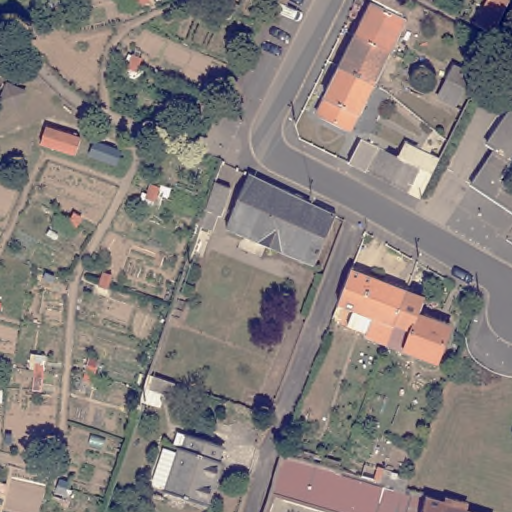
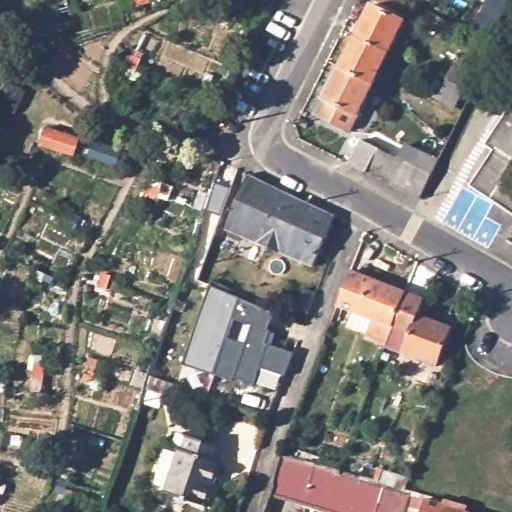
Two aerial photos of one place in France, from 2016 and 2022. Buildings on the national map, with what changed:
unchanged [(473,33),(489,2),(506,10),(493,35),(482,38),(473,33)]
unchanged [(353,43),(371,7),(403,23),(385,59),(353,43)]
unchanged [(339,72),(353,43),(385,59),(371,88),(339,72)]
unchanged [(316,117),(339,72),(371,88),(349,133),(316,117)]
unchanged [(443,87),(445,88),(451,74),(469,83),(462,97),(455,114),(435,104),(443,87)]
unchanged [(491,147),(512,115),(512,161),(491,147)]
unchanged [(86,140),(80,158),(44,148),(50,130),(86,140)]
unchanged [(381,178),(368,171),(350,161),(362,137),(380,148),(391,155),(398,159),(405,148),(436,165),(430,178),(420,198),(408,192),(395,185),(381,178)]
unchanged [(505,181),(512,186),(512,214),(477,188),(499,155),(512,161),(512,168),(505,181)]
unchanged [(225,227),(250,175),(336,215),(313,265),(225,227)]
demolished [(198,225),(212,183),(229,188),(220,216),(217,215),(212,230),(198,225)]
unchanged [(368,344),(370,340),(350,332),(356,317),(342,311),(355,275),(411,297),(399,329),(391,350),(390,353),(368,344)]
new [(210,286),(272,309),(266,331),(274,333),(270,345),(292,352),(284,376),(258,368),(252,383),(232,377),(231,380),(184,364),(210,286)]
unchanged [(391,350),(399,329),(417,336),(423,320),(455,332),(441,369),(391,350)]
unchanged [(169,494),(184,452),(188,453),(193,439),(227,451),(222,465),(227,467),(212,509),(169,494)]
unchanged [(425,512),(340,512),(332,512),(306,504),(307,502),(273,493),(286,454),(341,470),(342,471),(385,482),(388,471),(414,478),(411,490),(430,496),(425,512)]
unchanged [(487,512),(425,512),(430,496),(487,512)]

